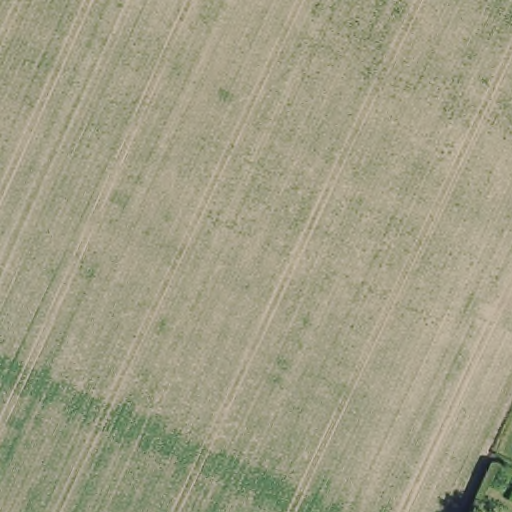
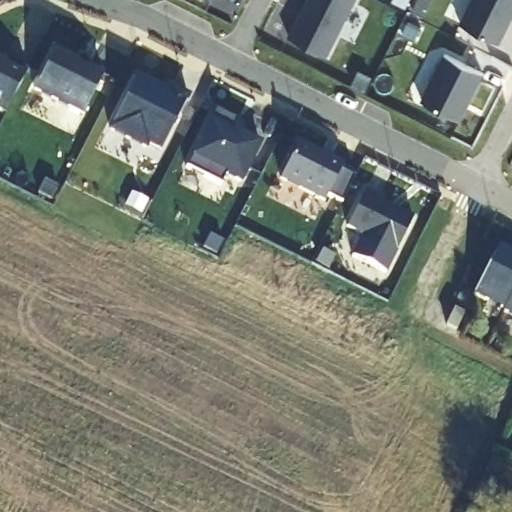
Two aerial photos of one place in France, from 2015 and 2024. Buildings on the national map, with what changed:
new [(327,56),(289,36),(307,0),(355,0),(327,56)]
new [(461,22),(472,0),(512,0),(512,17),(500,41),(461,22)]
new [(75,60),(82,56),(89,67),(103,75),(84,114),(34,89),(54,50),(75,60)]
new [(484,73),(459,118),(421,98),(445,52),(484,73)]
new [(0,58),(10,63),(9,66),(25,70),(4,113),(0,112),(0,58)]
new [(185,99),(160,150),(142,148),(110,131),(137,75),(185,99)]
new [(237,121),(232,130),(260,143),(240,181),(226,174),(220,185),(185,168),(215,109),(237,121)]
new [(327,196),(325,201),(280,178),(297,143),(327,158),(328,157),(344,164),(340,170),(355,178),(341,204),(327,196)]
new [(386,271),(351,254),(361,233),(347,227),(365,191),(412,215),(386,271)]
new [(512,242),(512,316),(502,312),(505,309),(473,295),(501,237),(512,242)]
new [(446,326),(454,308),(464,313),(455,330),(446,326)]

